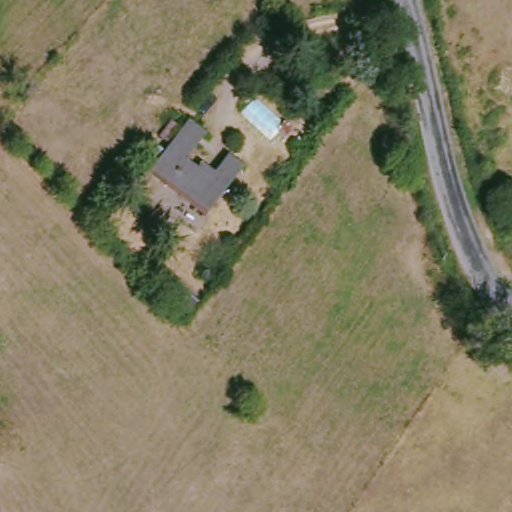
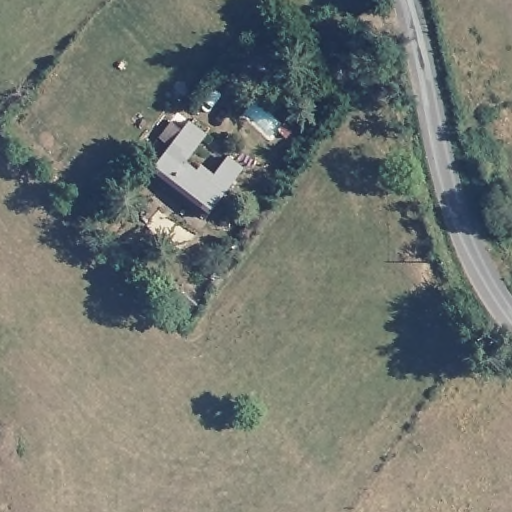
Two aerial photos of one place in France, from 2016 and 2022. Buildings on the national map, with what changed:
unchanged [(168,182),(152,170),(164,154),(189,122),(206,134),(184,162),(197,172),(201,166),(213,176),(228,157),(243,168),(206,217),(191,206),(165,186),(168,182)]
unchanged [(95,224),(103,215),(118,229),(109,238),(95,224)]
unchanged [(169,299),(178,289),(196,304),(188,314),(169,299)]

